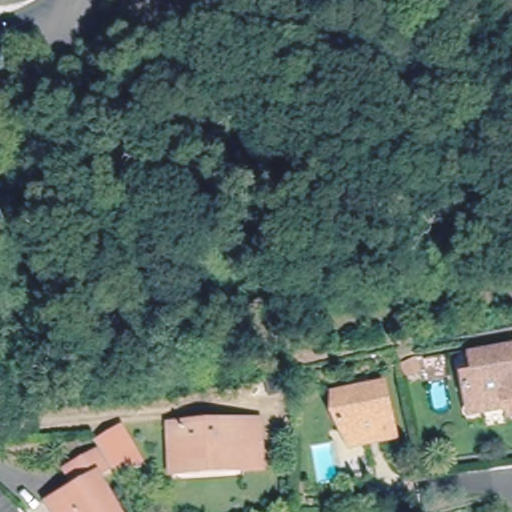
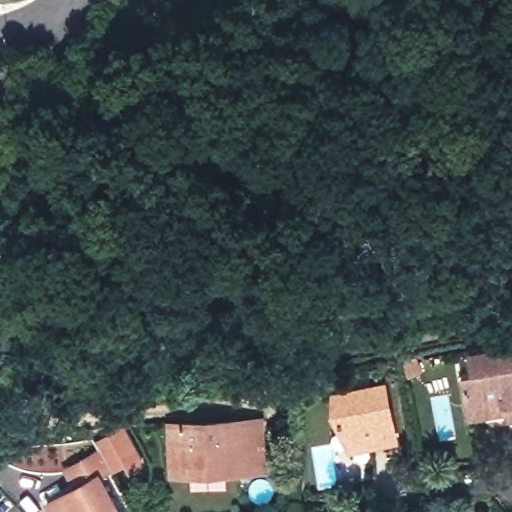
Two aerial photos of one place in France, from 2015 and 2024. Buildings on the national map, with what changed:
unchanged [(507,403),(482,407),(469,410),(466,395),(462,368),(473,367),(470,351),(512,343),(512,411),(508,412),(507,403)]
unchanged [(352,428),(347,430),(345,426),(343,422),(342,418),(341,417),(341,413),(340,411),(339,407),(339,403),(339,401),(339,398),(339,396),(353,393),(352,383),(372,378),(375,388),(390,385),(393,402),(387,403),(396,440),(372,445),(357,448),(352,428)]
unchanged [(172,472),(171,425),(243,422),(261,422),(262,469),(245,470),(226,471),(191,472),(172,472)]
unchanged [(127,470),(122,461),(110,468),(100,450),(95,442),(107,436),(122,427),(141,462),(135,466),(127,470)]
unchanged [(64,493),(75,487),(65,470),(100,450),(110,468),(97,476),(117,509),(118,512),(53,512),(47,503),(64,493)]

